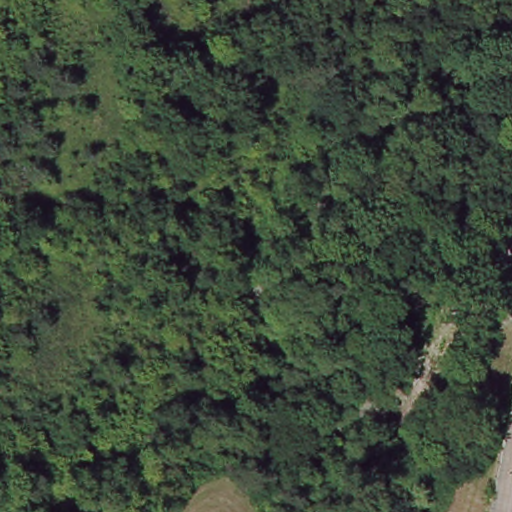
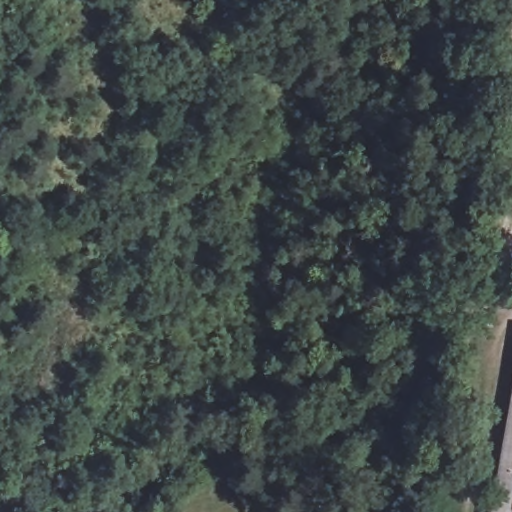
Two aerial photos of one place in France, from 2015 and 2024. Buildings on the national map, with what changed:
unchanged [(512,405),(512,512),(493,512),(512,405)]

